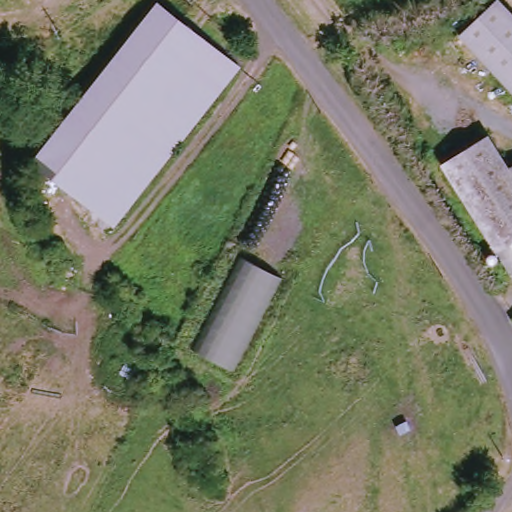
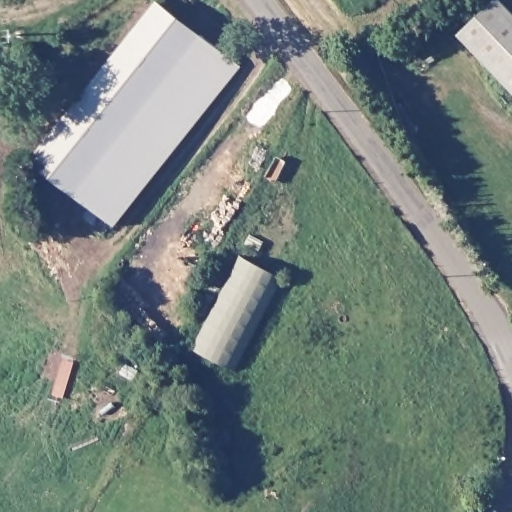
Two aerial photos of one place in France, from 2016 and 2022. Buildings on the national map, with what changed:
unchanged [(462,33),(502,0),(506,0),(512,7),(512,92),(462,33)]
unchanged [(239,65),(118,225),(34,164),(156,3),(239,65)]
demolished [(444,164),(488,136),(505,163),(512,159),(512,274),(444,164)]
unchanged [(197,352),(243,260),(279,277),(232,371),(197,352)]

